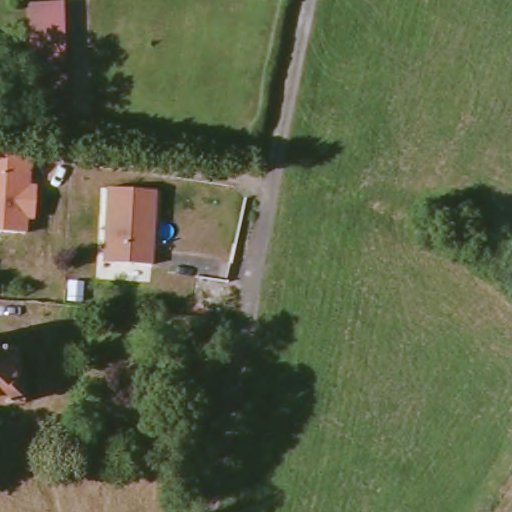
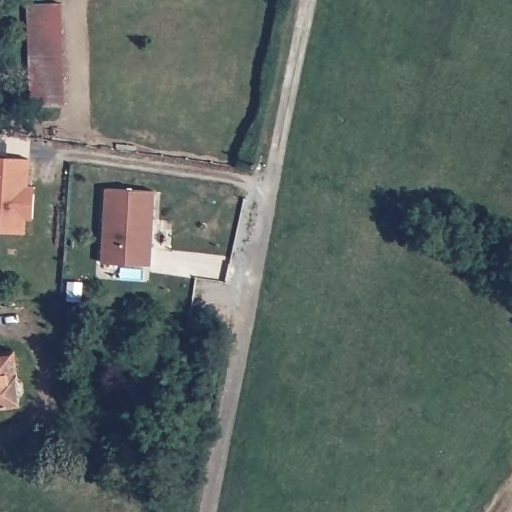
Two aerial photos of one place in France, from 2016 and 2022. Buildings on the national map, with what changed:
unchanged [(65,2),(67,103),(33,103),(31,2),(65,2)]
unchanged [(30,185),(37,185),(35,220),(28,220),(27,235),(0,233),(0,156),(31,158),(30,185)]
unchanged [(108,189),(157,194),(150,269),(102,264),(108,189)]
unchanged [(19,401),(0,404),(0,352),(14,350),(19,401)]

